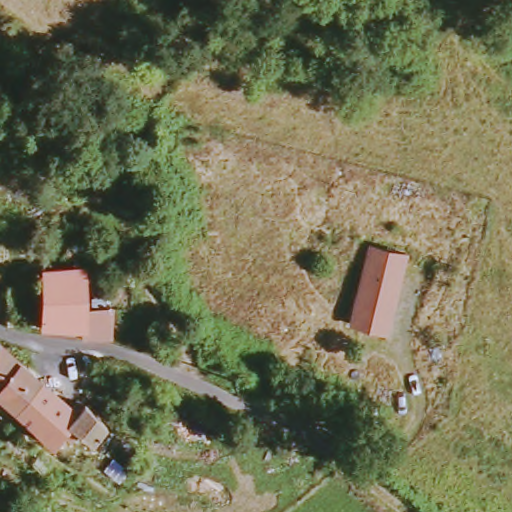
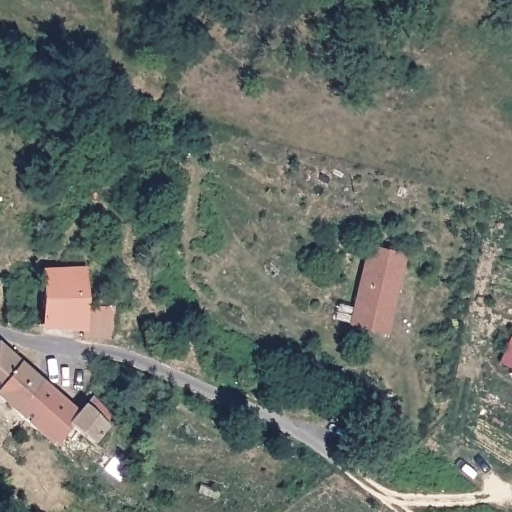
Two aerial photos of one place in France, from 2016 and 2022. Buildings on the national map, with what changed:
unchanged [(408,263),(387,340),(352,331),(374,254),(408,263)]
unchanged [(113,331),(101,332),(88,332),(84,318),(48,320),(41,271),(73,262),(82,304),(109,302),(113,331)]
new [(500,361),(512,336),(512,367),(500,361)]
unchanged [(18,353),(37,371),(45,379),(14,413),(0,400),(0,338),(1,338),(18,353)]
unchanged [(109,425),(91,438),(68,423),(50,444),(25,424),(14,413),(45,379),(79,409),(88,403),(109,425)]

